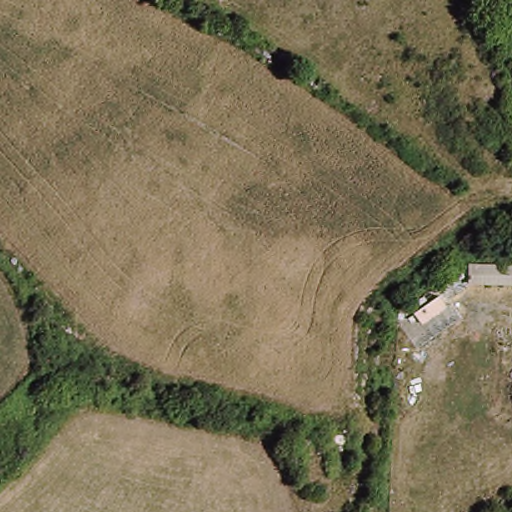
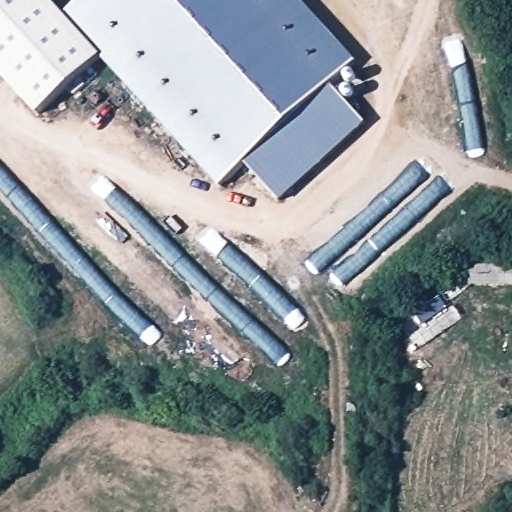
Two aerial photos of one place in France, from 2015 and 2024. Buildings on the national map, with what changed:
new [(244,164),(218,187),(100,57),(36,116),(0,77),(0,0),(49,0),(64,16),(81,0),(298,0),(355,63),(330,86),(365,124),(280,201),(244,164)]
unchanged [(512,264),(512,285),(469,284),(469,264),(512,264)]
new [(447,307),(422,323),(414,311),(439,294),(447,307)]

